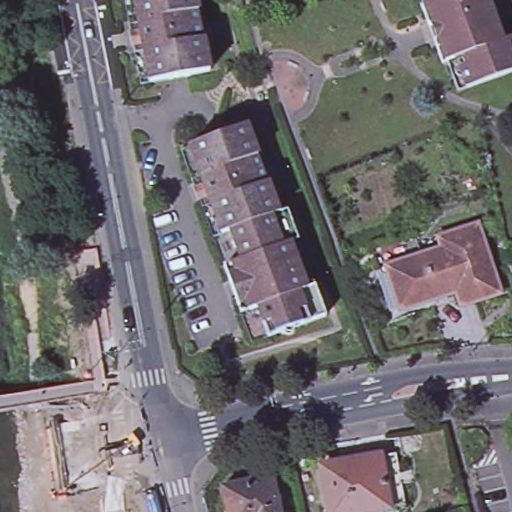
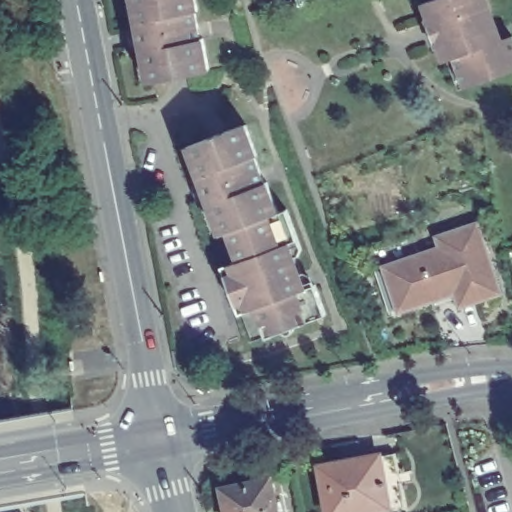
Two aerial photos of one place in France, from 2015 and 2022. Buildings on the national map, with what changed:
unchanged [(143,84),(132,0),(199,0),(213,71),(143,84)]
unchanged [(512,36),(512,73),(469,89),(459,59),(443,64),(422,1),(424,0),(491,0),(504,39),(512,36)]
unchanged [(279,209),(289,208),(300,241),(291,242),(308,286),(316,282),(326,317),(266,335),(258,307),(234,309),(223,276),(236,272),(233,262),(241,258),(229,233),(218,234),(188,146),(247,121),(279,209)]
unchanged [(436,233),(479,220),(504,293),(461,308),(454,293),(396,310),(384,263),(439,246),(436,233)]
unchanged [(384,448),(394,498),(406,497),(410,512),(319,512),(309,467),(384,448)]
unchanged [(274,472),(281,512),(225,512),(219,484),(274,472)]

